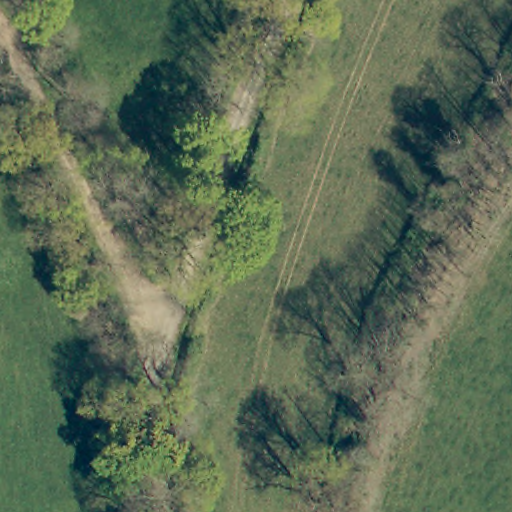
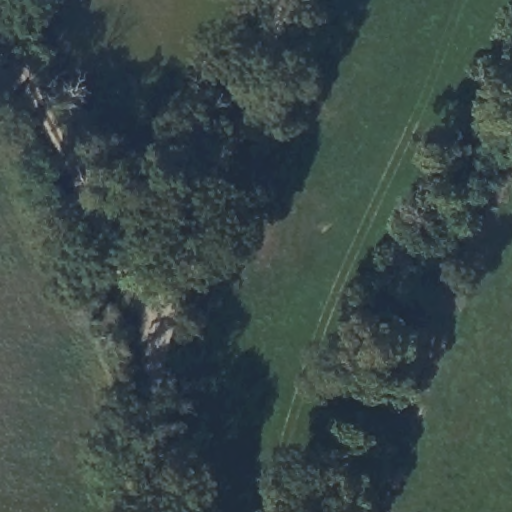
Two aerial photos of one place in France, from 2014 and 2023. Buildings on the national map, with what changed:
[]

